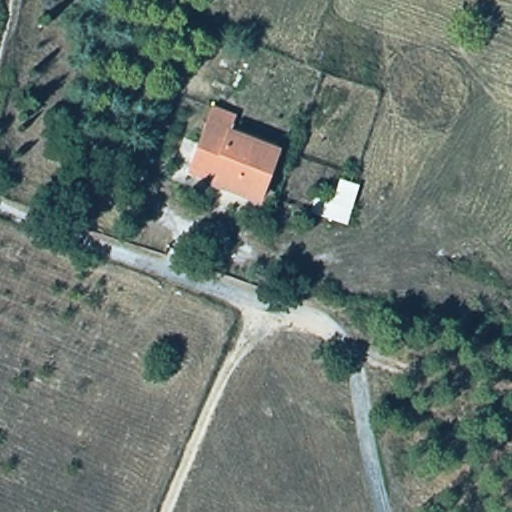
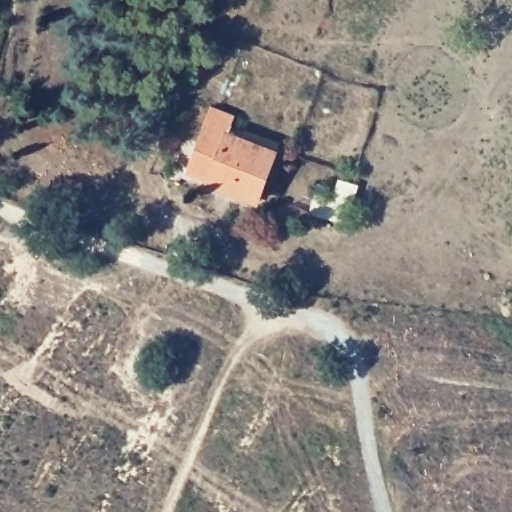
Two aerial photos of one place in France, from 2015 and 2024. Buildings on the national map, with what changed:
unchanged [(212,108),(238,118),(231,139),(278,154),(260,204),(189,176),(212,108)]
unchanged [(312,194),(330,197),(336,178),(360,187),(348,229),(307,217),(312,194)]

